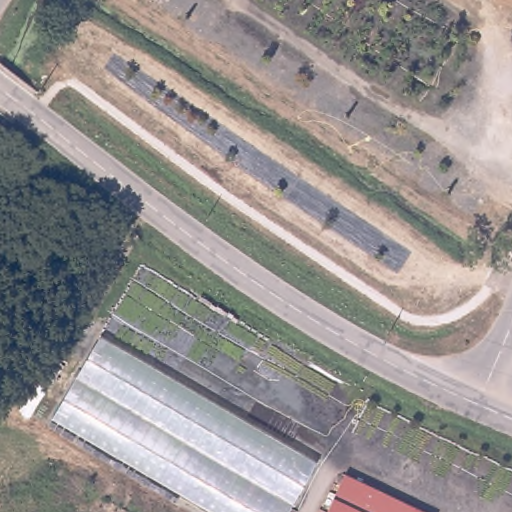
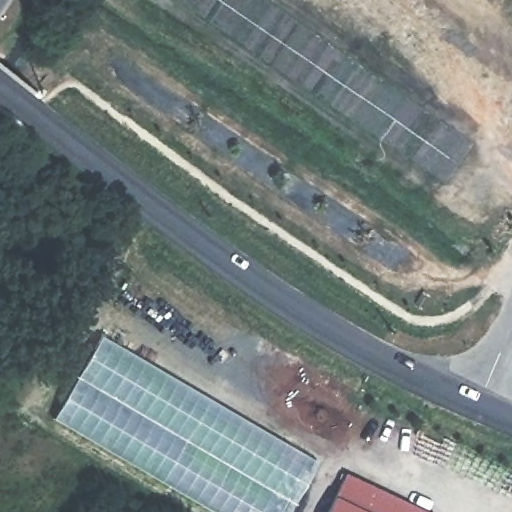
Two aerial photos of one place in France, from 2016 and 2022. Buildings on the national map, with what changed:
unchanged [(289,512),(212,512),(52,420),(102,337),(318,462),(289,512)]
unchanged [(348,472),(435,512),(328,512),(348,472)]

